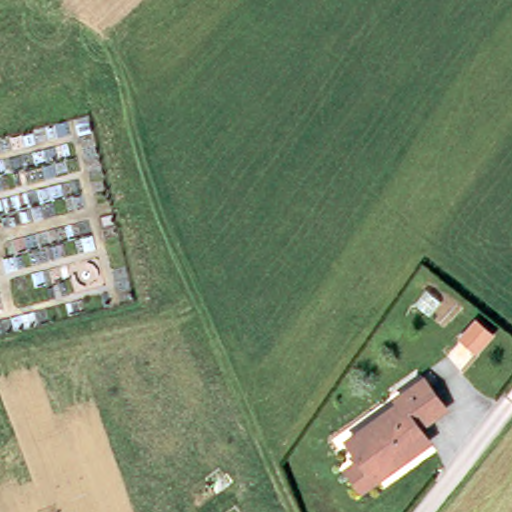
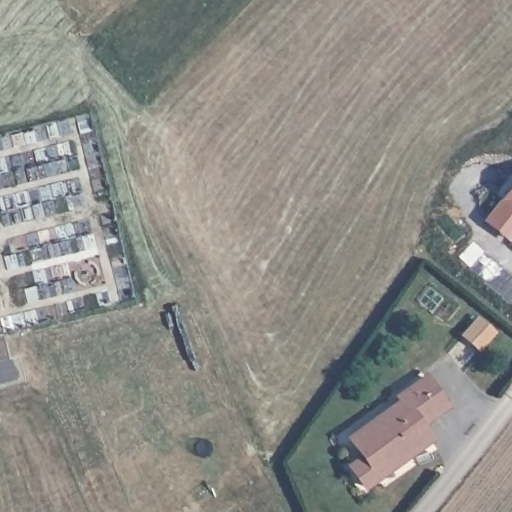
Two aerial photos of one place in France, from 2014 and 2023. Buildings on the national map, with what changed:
new [(479,221),(512,182),(512,232),(505,241),(479,221)]
unchanged [(487,328),(491,331),(475,350),(474,348),(458,335),(475,317),(487,328)]
unchanged [(439,392),(444,399),(423,415),(417,420),(418,422),(427,434),(395,457),(360,482),(345,462),(360,452),(352,440),(349,434),(360,425),(399,396),(395,391),(422,370),(439,392)]

